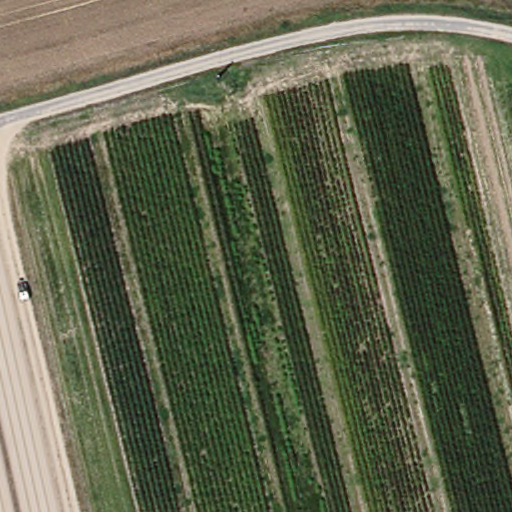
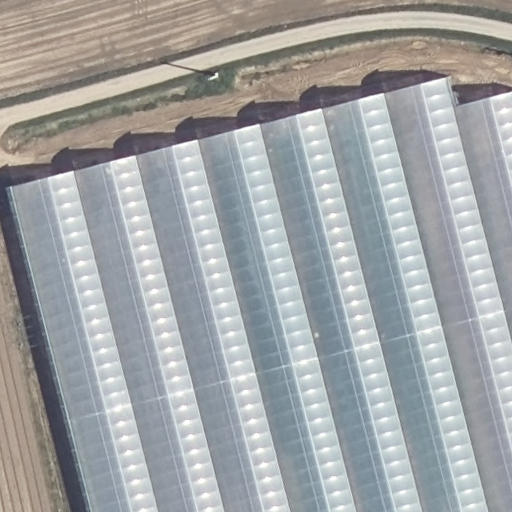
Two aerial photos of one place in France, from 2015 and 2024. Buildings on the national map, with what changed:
new [(17,185),(452,73),(461,104),(512,90),(512,512),(102,512),(17,185)]

